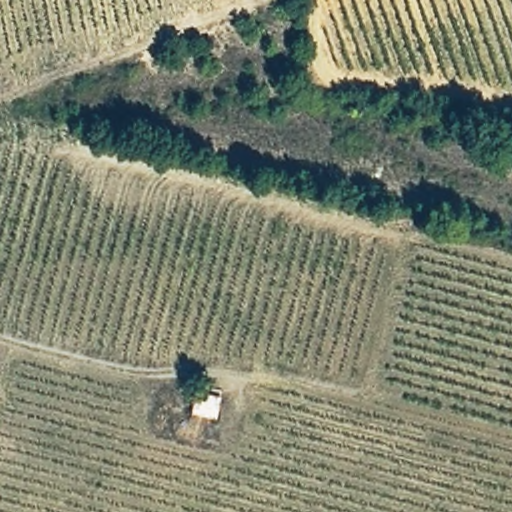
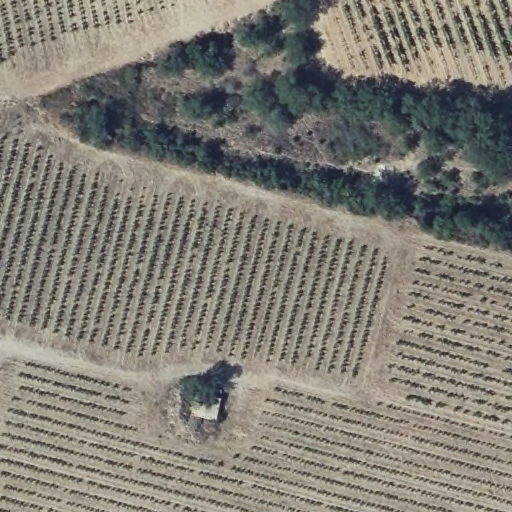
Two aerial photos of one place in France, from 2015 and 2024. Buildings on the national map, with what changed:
unchanged [(195,410),(203,391),(223,398),(219,420),(195,410)]

